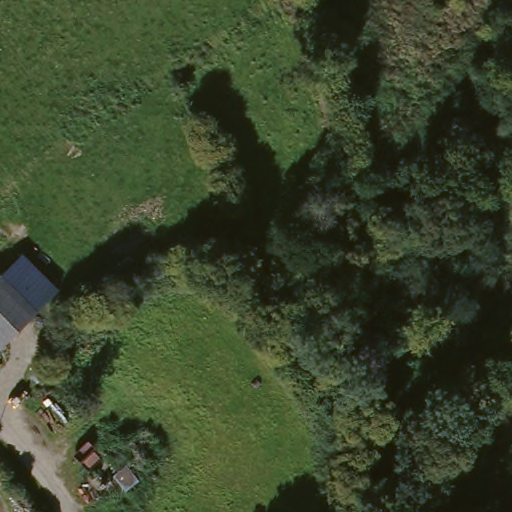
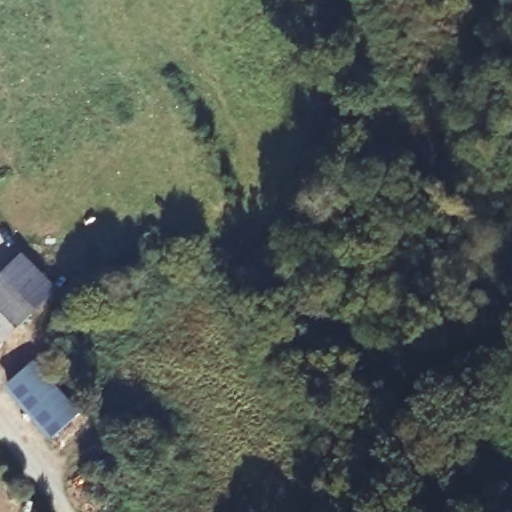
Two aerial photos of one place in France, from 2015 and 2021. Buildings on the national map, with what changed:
unchanged [(22,255),(58,298),(17,333),(1,347),(0,345),(0,275),(22,255)]
unchanged [(0,348),(0,345),(1,347),(0,348)]
new [(80,415),(50,442),(4,389),(34,362),(80,415)]

